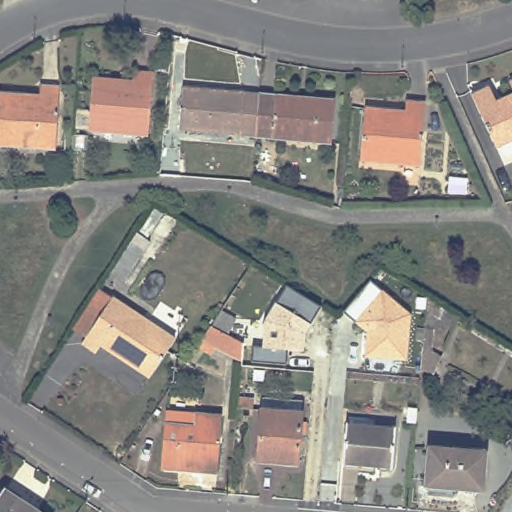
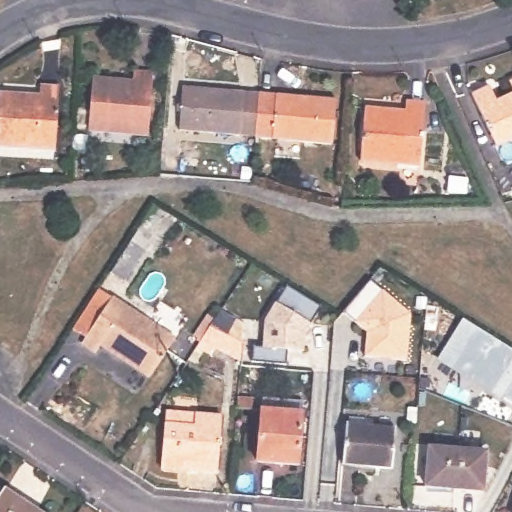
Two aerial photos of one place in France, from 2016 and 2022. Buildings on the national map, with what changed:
unchanged [(99,79),(138,83),(139,71),(158,73),(152,136),(94,131),(99,79)]
unchanged [(250,140),(183,134),(187,90),(265,97),(261,141),(250,140)]
unchanged [(496,90),(503,104),(512,100),(512,145),(503,150),(478,97),(496,90)]
unchanged [(5,96),(46,100),(47,92),(65,92),(59,153),(0,147),(0,142),(5,96)]
unchanged [(344,105),(340,147),(261,141),(265,97),(344,105)]
unchanged [(370,108),(410,112),(411,103),(431,105),(425,165),(365,159),(370,108)]
unchanged [(147,237),(136,230),(155,200),(166,206),(147,237)]
unchanged [(132,241),(145,249),(125,281),(112,273),(132,241)]
unchanged [(343,312),(369,282),(381,291),(410,314),(407,357),(365,356),(366,332),(353,320),(343,312)]
unchanged [(308,324),(303,335),(304,348),(285,347),(285,363),(251,362),(252,348),(262,347),(263,318),(275,302),(285,287),(319,306),(308,324)]
unchanged [(173,338),(150,373),(119,353),(116,357),(99,346),(94,352),(83,344),(86,338),(72,328),(98,289),(173,338)]
demolished [(213,330),(223,313),(256,332),(247,347),(246,363),(204,345),(213,330)]
new [(512,349),(512,402),(439,357),(463,319),(512,349)]
unchanged [(261,470),(266,417),(267,408),(305,412),(304,422),(301,473),(261,470)]
unchanged [(175,417),(229,420),(225,476),(171,471),(175,417)]
unchanged [(351,427),(401,432),(397,472),(347,467),(351,427)]
unchanged [(438,452),(496,458),(492,496),(435,491),(438,452)]
unchanged [(48,512),(0,512),(0,510),(13,490),(48,512)]

